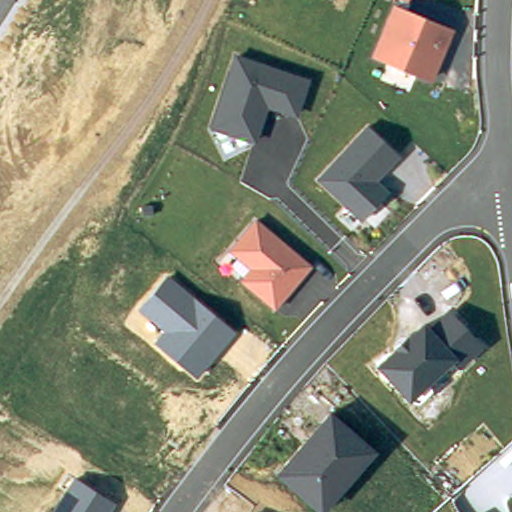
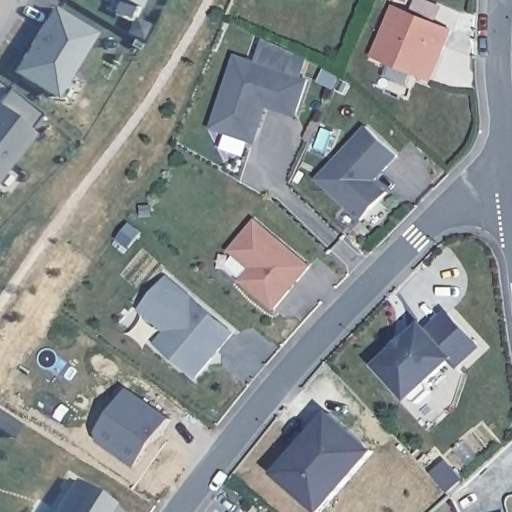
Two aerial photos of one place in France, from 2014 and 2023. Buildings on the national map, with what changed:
new [(140,9),(122,0),(143,0),(140,9)]
unchanged [(435,82),(372,56),(394,5),(455,31),(435,82)]
new [(95,34),(56,99),(12,73),(52,7),(95,34)]
unchanged [(298,119),(269,109),(256,145),(211,130),(236,55),(310,79),(298,119)]
new [(40,114),(27,129),(34,134),(0,178),(0,100),(7,90),(40,114)]
unchanged [(401,159),(379,180),(392,192),(364,222),(319,179),(368,126),(401,159)]
unchanged [(313,267),(275,312),(240,281),(250,270),(229,251),(256,219),(313,267)]
unchanged [(237,333),(198,379),(154,343),(164,331),(139,310),(168,275),(237,333)]
unchanged [(374,365),(425,321),(432,328),(447,314),(480,346),(460,365),(458,357),(409,400),(374,365)]
new [(100,431),(129,389),(172,419),(136,469),(102,443),(100,431)]
unchanged [(325,512),(317,512),(274,475),(330,410),(377,451),(325,512)]
unchanged [(117,505),(112,512),(53,512),(75,478),(117,505)]

